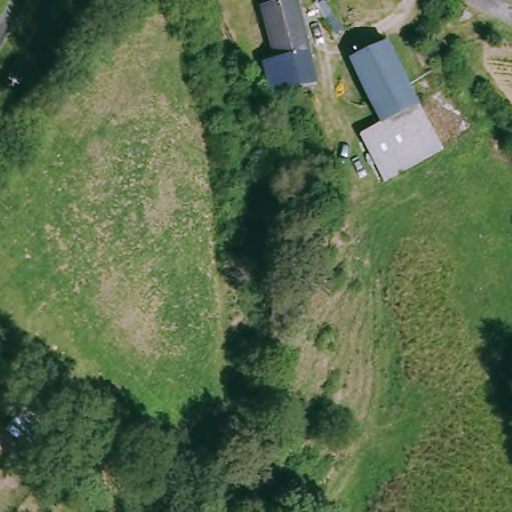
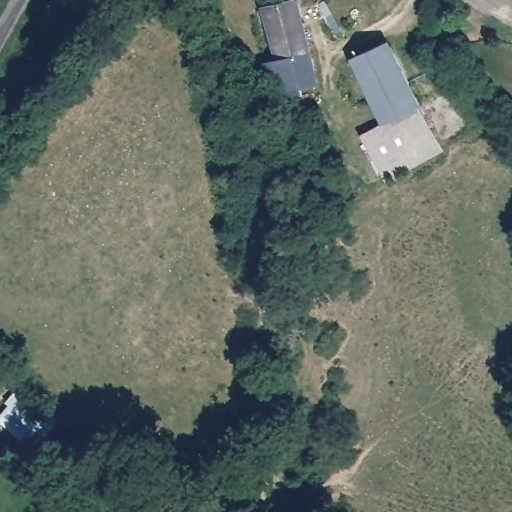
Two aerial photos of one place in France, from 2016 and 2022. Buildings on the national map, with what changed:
unchanged [(276,61),(264,9),(296,1),(316,85),(282,93),(270,95),(263,64),(276,61)]
unchanged [(347,59),(382,41),(414,106),(378,124),(347,59)]
unchanged [(378,124),(414,106),(439,156),(379,183),(356,134),(378,124)]

